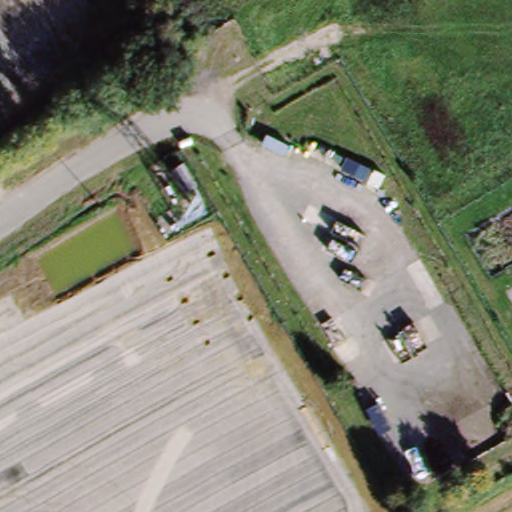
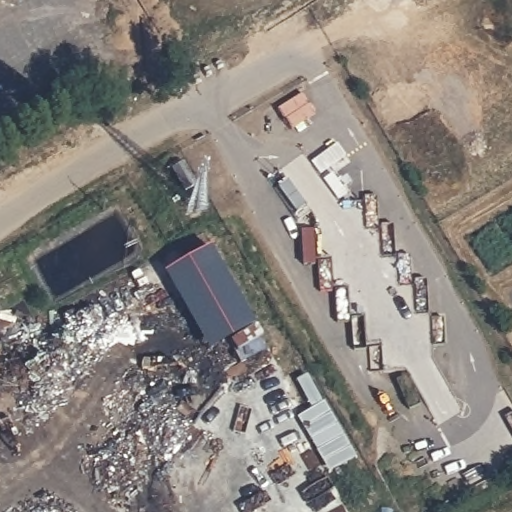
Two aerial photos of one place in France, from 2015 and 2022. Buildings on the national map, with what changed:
new [(184,164),(197,184),(185,192),(172,171),(184,164)]
new [(287,181),(303,206),(291,214),(275,189),(287,181)]
new [(209,249),(254,329),(209,354),(164,274),(209,249)]

